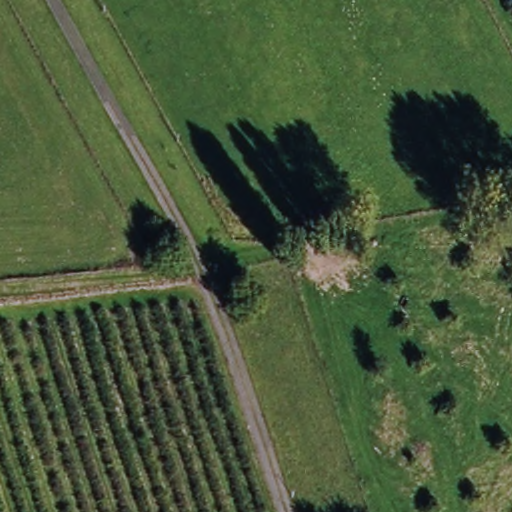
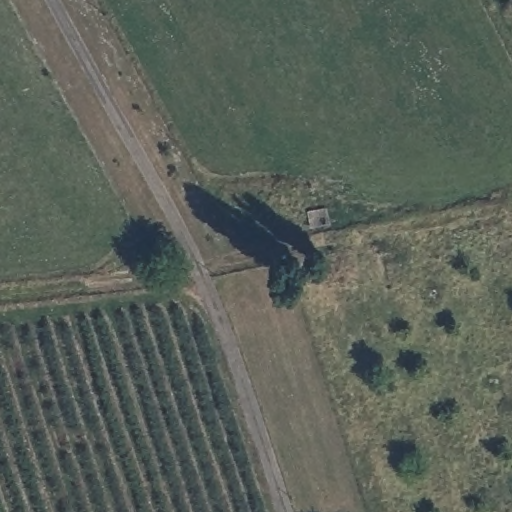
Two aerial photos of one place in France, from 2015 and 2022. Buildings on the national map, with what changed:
unchanged [(334,227),(311,232),(309,211),(330,206),(334,227)]

